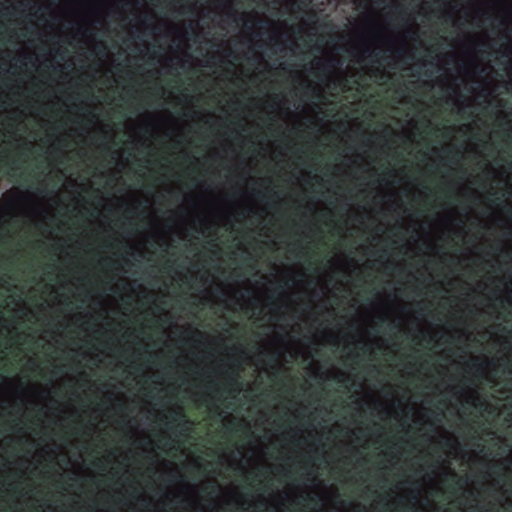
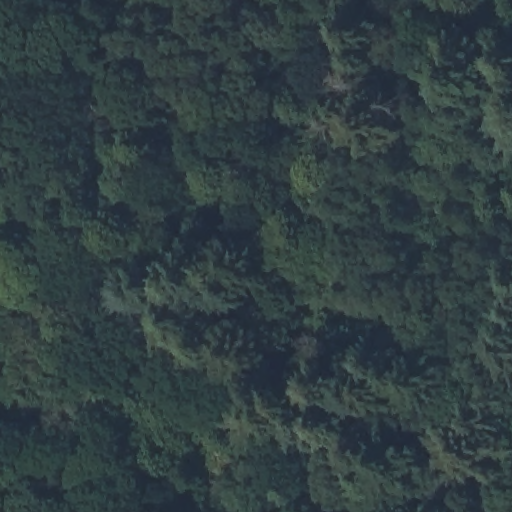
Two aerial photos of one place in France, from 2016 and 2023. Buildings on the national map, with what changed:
unchanged [(11,225),(6,246),(0,244),(0,177),(27,185),(19,227),(11,225)]

